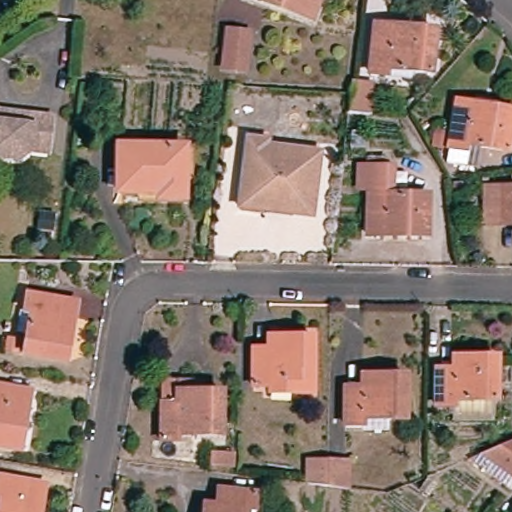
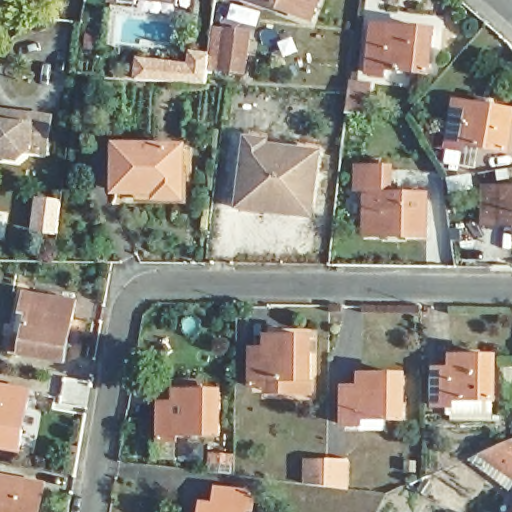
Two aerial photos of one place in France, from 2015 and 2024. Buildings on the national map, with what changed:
new [(110,0),(178,0),(179,5),(138,0),(138,5),(120,3),(110,4),(110,0)]
unchanged [(257,0),(320,0),(312,20),(257,0)]
unchanged [(245,73),(224,71),(229,32),(250,35),(245,73)]
unchanged [(436,42),(432,85),(389,80),(388,85),(371,83),(376,35),(436,42)]
new [(116,70),(136,70),(138,58),(188,63),(191,50),(211,53),(207,85),(134,80),(116,79),(116,70)]
unchanged [(353,84),(372,86),(370,116),(350,115),(352,94),(353,84)]
unchanged [(343,100),(342,113),(322,111),(324,98),(343,100)]
unchanged [(512,157),(473,150),(472,157),(456,154),(463,107),(512,116),(512,157)]
unchanged [(46,120),(43,157),(25,155),(16,161),(0,160),(0,116),(46,120)]
unchanged [(242,206),(250,145),(269,148),(268,153),(319,160),(312,221),(291,218),(241,212),(242,206)]
unchanged [(181,154),(180,205),(153,204),(153,198),(114,198),(114,153),(181,154)]
unchanged [(394,174),(394,200),(430,201),(429,242),(370,241),(370,195),(360,195),(360,174),(394,174)]
unchanged [(487,189),(512,190),(512,226),(486,225),(487,189)]
unchanged [(63,372),(20,363),(26,324),(20,323),(23,304),(72,314),(63,372)]
unchanged [(268,391),(253,391),(253,355),(269,355),(269,344),(314,344),(313,397),(292,397),(269,397),(268,391)]
unchanged [(498,369),(497,411),(455,410),(455,417),(436,416),(437,380),(452,380),(453,368),(498,369)]
unchanged [(408,378),(407,419),(364,419),(364,425),(345,425),(345,389),(361,389),(361,377),(408,378)]
unchanged [(222,393),(222,435),(179,435),(179,441),(161,441),(161,404),(177,405),(177,392),(222,393)]
unchanged [(27,402),(16,461),(0,459),(0,397),(27,402)]
unchanged [(512,441),(512,475),(484,453),(512,441)]
unchanged [(349,489),(328,487),(307,484),(307,462),(328,462),(349,463),(349,489)]
unchanged [(42,512),(1,512),(2,506),(0,506),(0,488),(45,496),(42,512)]
unchanged [(255,512),(217,512),(219,495),(256,500),(255,512)]
unchanged [(213,512),(205,512),(206,511),(213,512)]

